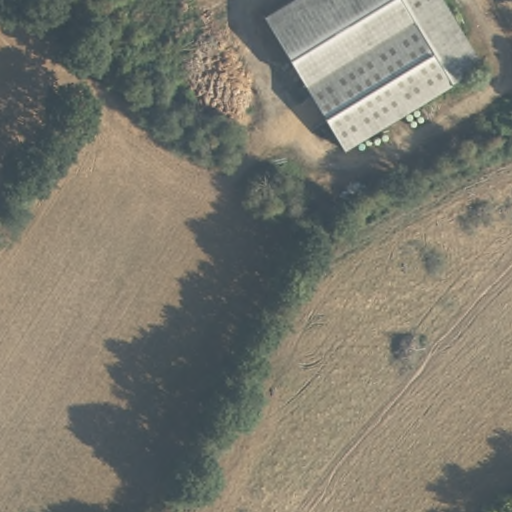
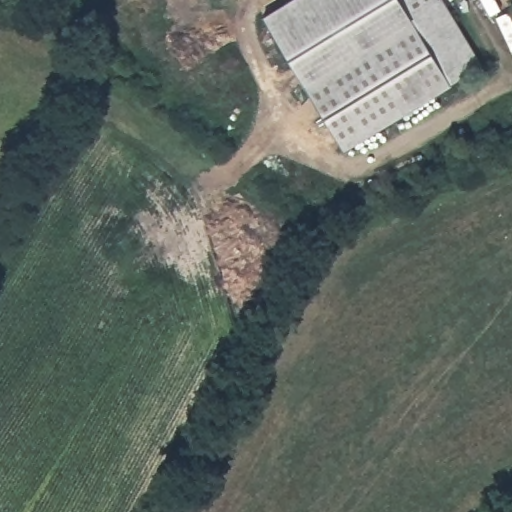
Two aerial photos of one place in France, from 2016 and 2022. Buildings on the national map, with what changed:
unchanged [(484,63),(345,151),(264,15),(288,0),(447,0),(484,63)]

